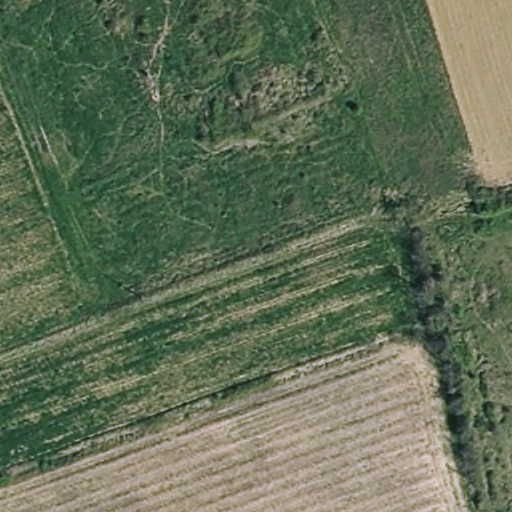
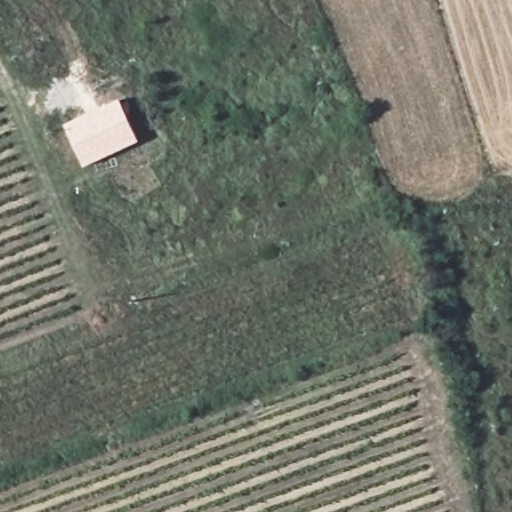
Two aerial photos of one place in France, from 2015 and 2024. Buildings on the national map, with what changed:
new [(83,165),(64,125),(119,100),(138,140),(83,165)]

